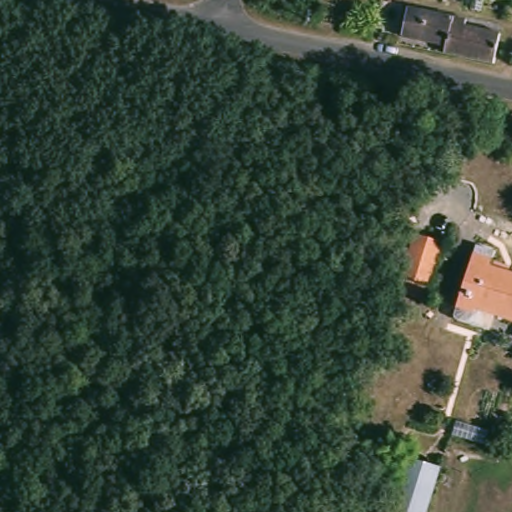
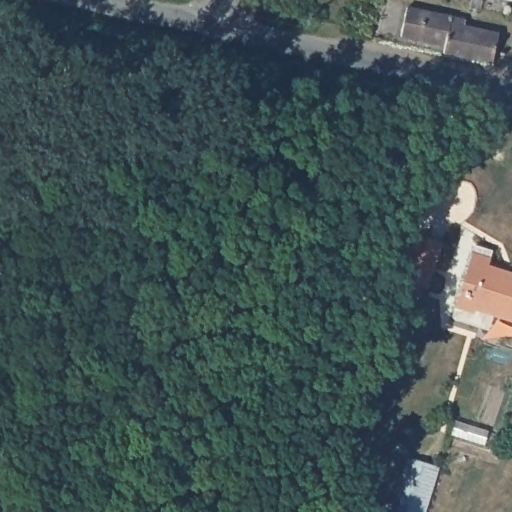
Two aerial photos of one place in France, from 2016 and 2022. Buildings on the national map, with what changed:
unchanged [(512,9),(480,0),(512,0),(512,9)]
unchanged [(473,20),(471,26),(499,34),(493,69),(447,55),(447,51),(401,39),(411,4),(473,20)]
unchanged [(429,285),(400,278),(412,235),(441,243),(429,285)]
unchanged [(492,268),(512,274),(512,313),(482,303),(479,313),(459,306),(475,253),(495,258),(492,268)]
unchanged [(430,512),(393,512),(409,459),(443,469),(430,512)]

